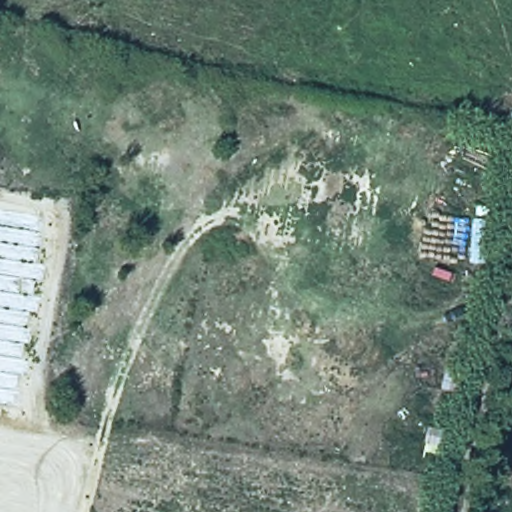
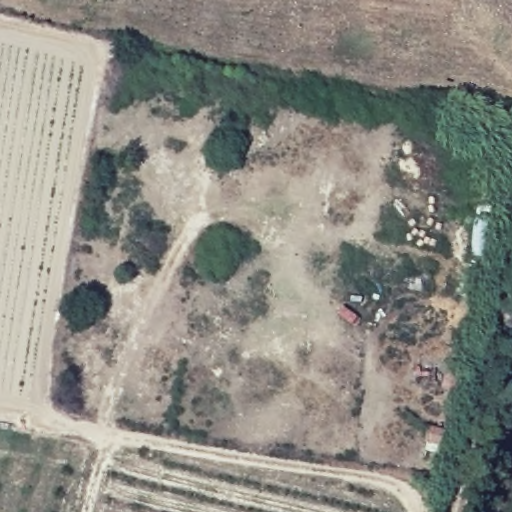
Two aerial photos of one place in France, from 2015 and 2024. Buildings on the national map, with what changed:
unchanged [(460,367),(457,382),(442,378),(443,364),(460,367)]

